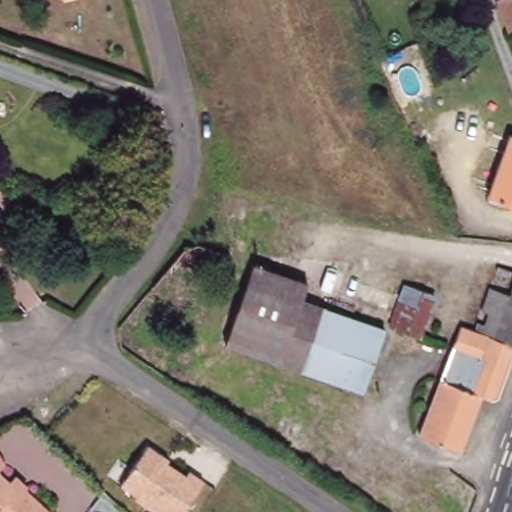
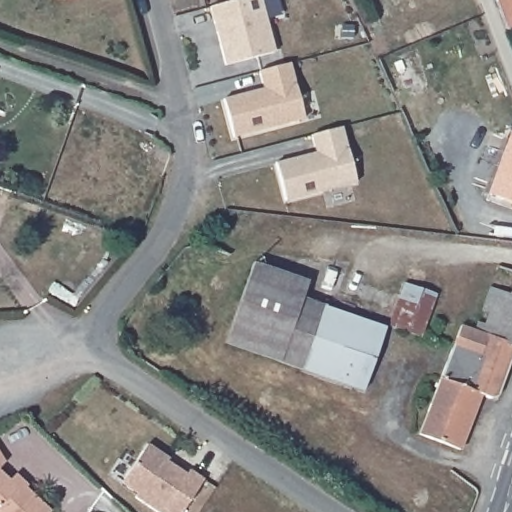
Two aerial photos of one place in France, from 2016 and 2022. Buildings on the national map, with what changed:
new [(261,0),(275,52),(226,65),(211,6),(234,0),(261,0)]
unchanged [(493,0),(512,0),(512,18),(504,25),(493,0)]
new [(263,88),(258,71),(289,63),(303,118),(232,136),(223,99),(263,88)]
new [(316,151),(311,135),(342,126),(356,181),(285,200),(275,162),(316,151)]
unchanged [(512,203),(487,194),(508,132),(512,134),(512,203)]
unchanged [(301,285),(296,301),(379,331),(357,396),(218,347),(247,266),(301,285)]
unchanged [(476,320),(483,323),(487,311),(480,308),(487,287),(507,295),(512,281),(512,354),(498,393),(490,397),(480,393),(458,447),(419,432),(461,323),(473,328),(476,320)]
unchanged [(427,297),(411,340),(382,330),(398,286),(427,297)]
unchanged [(121,484),(147,444),(169,459),(166,462),(184,475),(189,469),(204,480),(182,512),(157,512),(121,484)]
unchanged [(9,483),(14,478),(24,487),(48,512),(0,512),(0,476),(9,483)]

